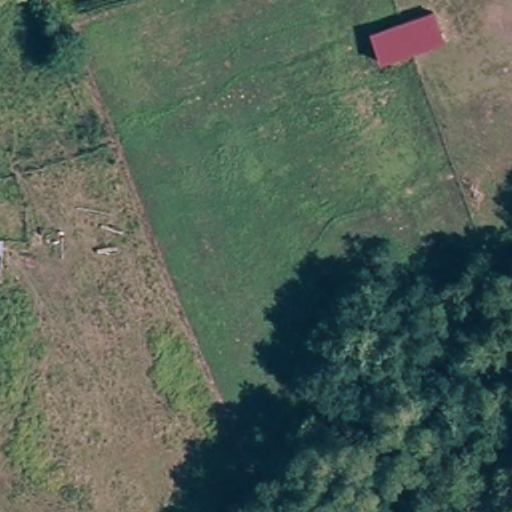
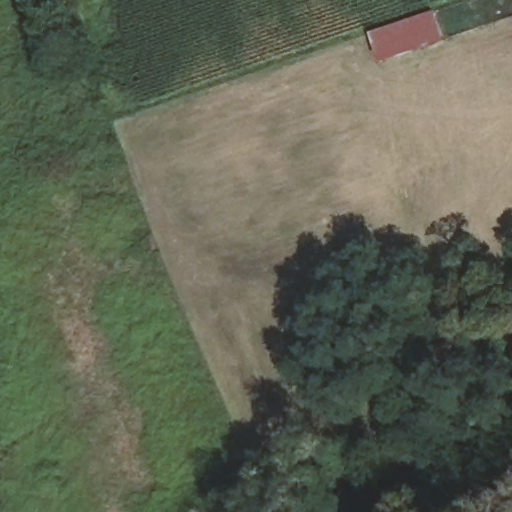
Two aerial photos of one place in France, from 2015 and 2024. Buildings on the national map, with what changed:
unchanged [(442,40),(377,61),(368,34),(432,13),(442,40)]

